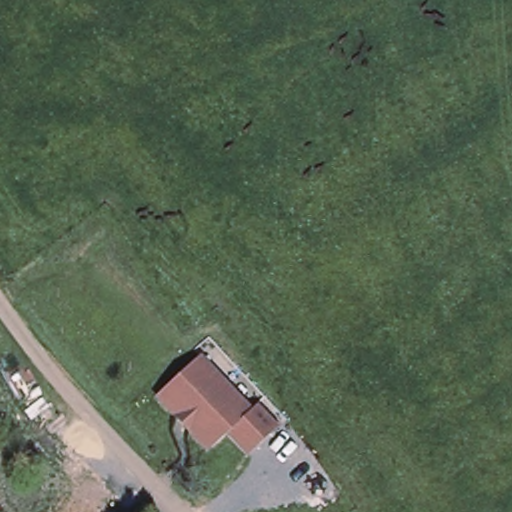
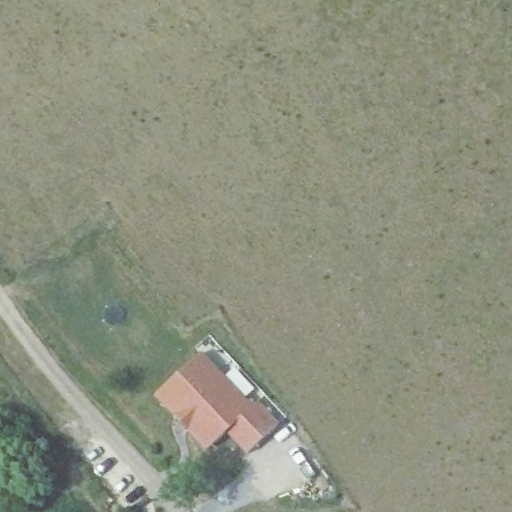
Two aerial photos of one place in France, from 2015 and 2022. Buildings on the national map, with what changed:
unchanged [(250,407),(255,402),(277,425),(261,440),(247,453),(226,430),(213,444),(202,443),(195,435),(195,425),(203,417),(187,400),(178,407),(170,407),(168,407),(160,400),(160,394),(160,388),(200,352),(207,360),(250,407)]

